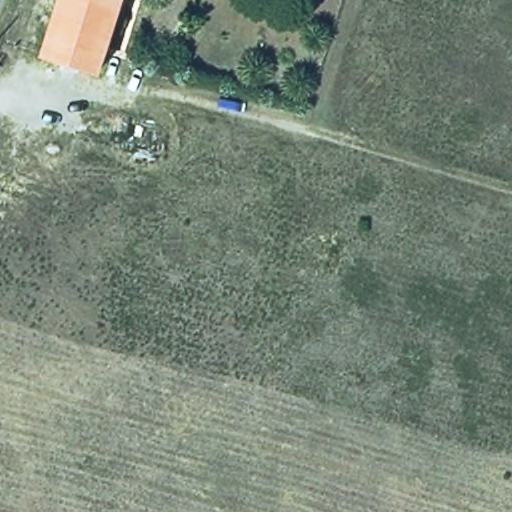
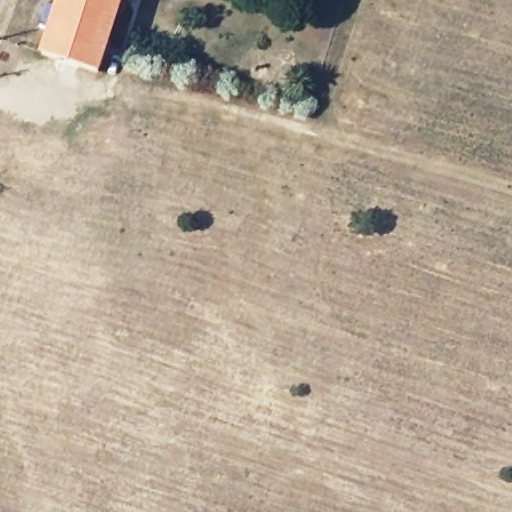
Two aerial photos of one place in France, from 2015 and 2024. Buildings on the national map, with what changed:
unchanged [(59,0),(119,0),(97,69),(44,48),(59,0)]

